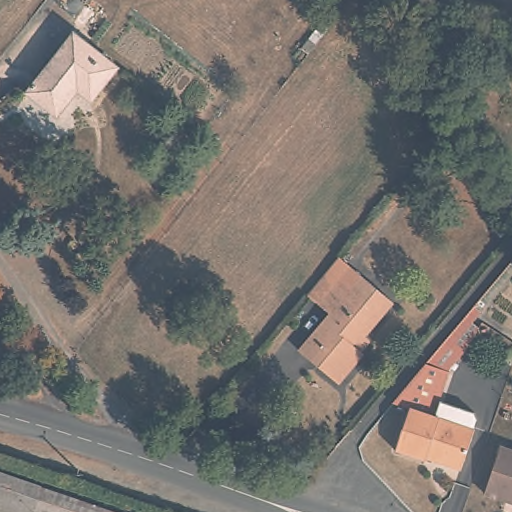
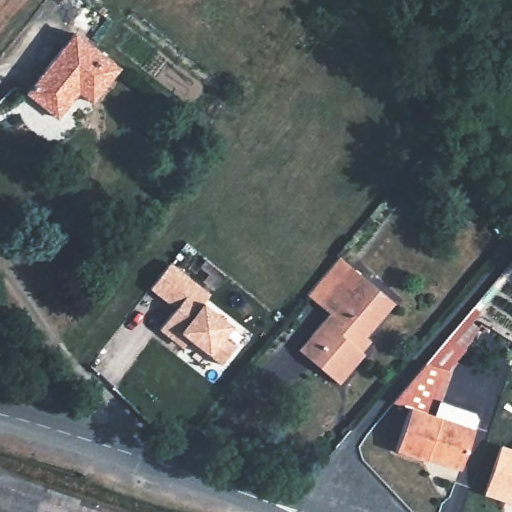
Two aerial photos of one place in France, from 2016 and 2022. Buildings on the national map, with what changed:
unchanged [(116,72),(91,104),(76,92),(56,119),(25,94),(72,37),(116,72)]
new [(171,257),(211,289),(203,298),(233,322),(224,333),(237,343),(222,361),(191,335),(186,341),(178,335),(176,336),(161,324),(177,302),(151,282),(171,257)]
unchanged [(353,350),(361,356),(338,385),(308,360),(320,346),(308,335),(325,315),(314,306),(302,296),(323,271),(334,258),(390,304),(353,350)]
unchanged [(471,310),(479,316),(472,325),(479,330),(446,373),(426,365),(471,310)]
unchanged [(446,373),(436,401),(470,413),(466,430),(475,433),(461,474),(441,467),(439,462),(428,459),(426,465),(395,455),(410,412),(392,406),(426,365),(446,373)]
unchanged [(497,450),(512,456),(512,509),(481,498),(497,450)]
unchanged [(103,512),(9,512),(0,509),(0,475),(103,512)]

